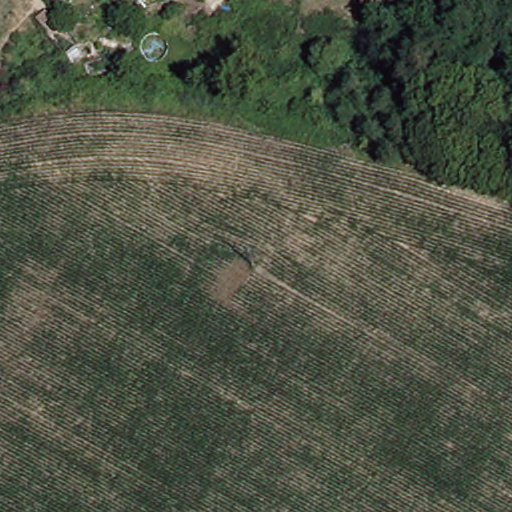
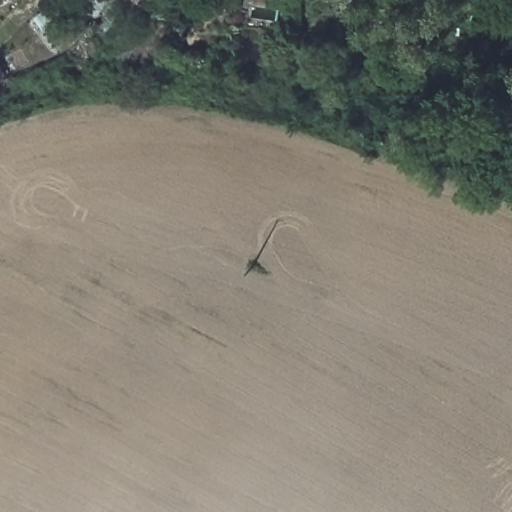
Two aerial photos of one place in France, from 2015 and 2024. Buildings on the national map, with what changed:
[]

